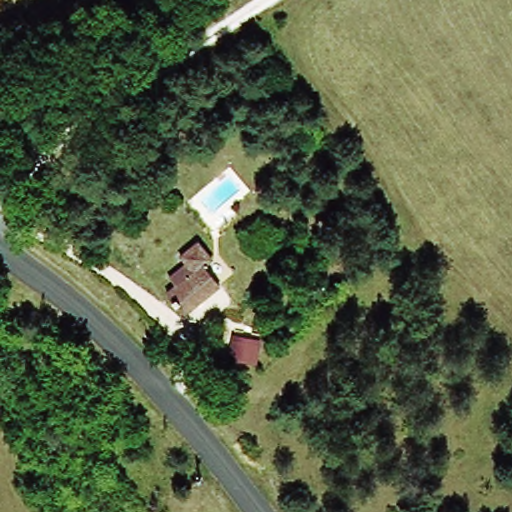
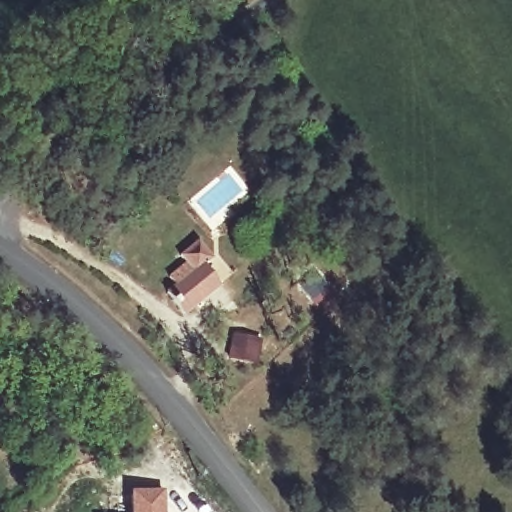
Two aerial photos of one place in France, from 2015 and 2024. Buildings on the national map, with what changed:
unchanged [(182,315),(167,296),(177,288),(167,278),(182,267),(175,259),(195,243),(211,262),(206,266),(220,285),(182,315)]
new [(130,493),(163,492),(164,512),(131,512),(130,493)]

